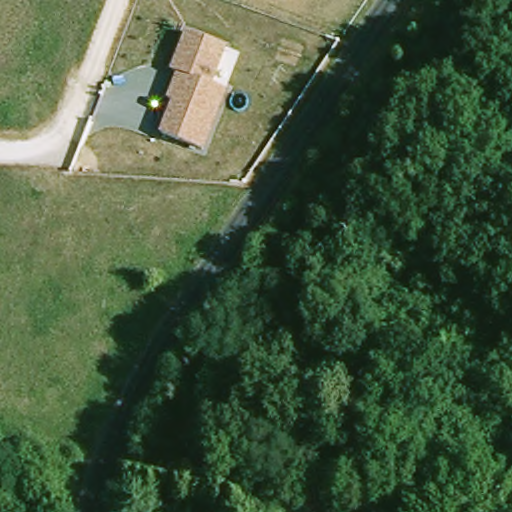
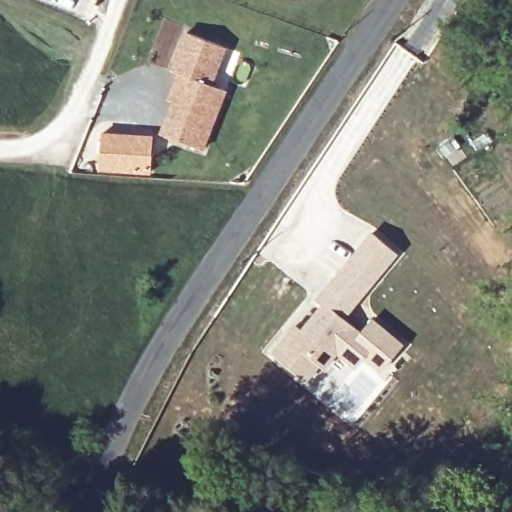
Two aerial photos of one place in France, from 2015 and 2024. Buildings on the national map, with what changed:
unchanged [(226,47),(211,86),(227,92),(204,151),(159,133),(171,103),(166,101),(175,75),(170,72),(184,33),(226,47)]
new [(101,132),(154,135),(151,174),(97,170),(101,132)]
new [(299,375),(271,353),(286,336),(294,325),(300,330),(322,304),(316,299),(370,233),(395,253),(342,318),(360,332),(371,319),(401,343),(380,369),(362,355),(367,349),(355,339),(341,356),(336,352),(323,367),(318,364),(305,380),(299,375)]

